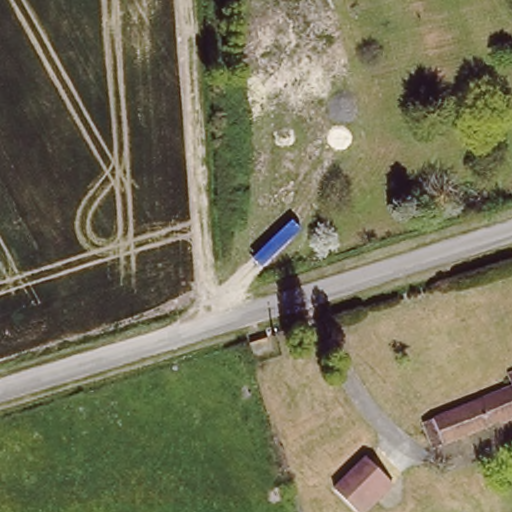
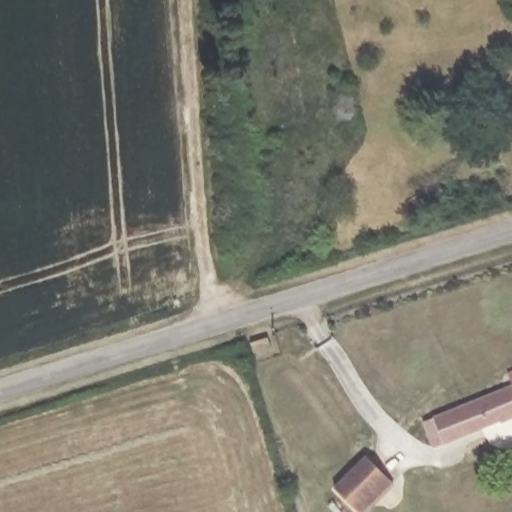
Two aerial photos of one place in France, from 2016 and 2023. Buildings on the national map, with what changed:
unchanged [(421,418),(509,384),(505,372),(512,369),(512,410),(431,442),(421,418)]
unchanged [(393,484),(366,512),(358,512),(333,489),(365,457),(393,484)]

